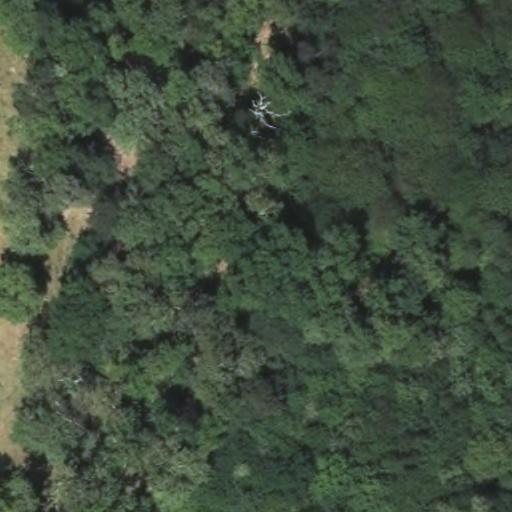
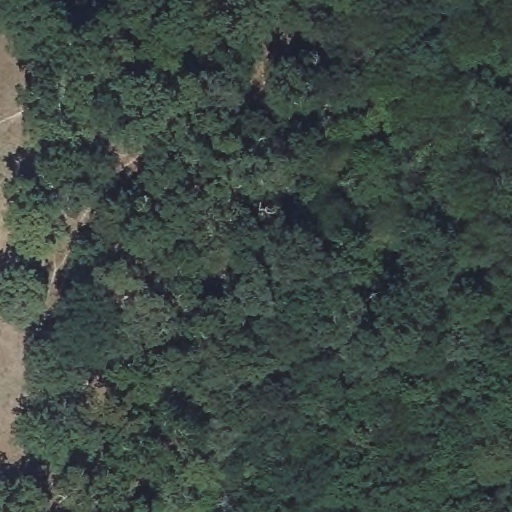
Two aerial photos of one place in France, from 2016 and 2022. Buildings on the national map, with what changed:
[]

